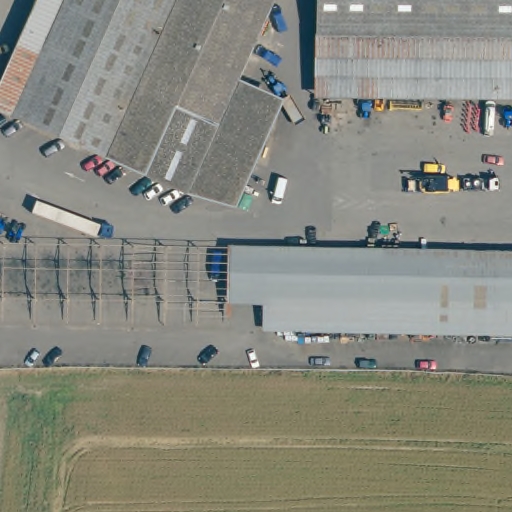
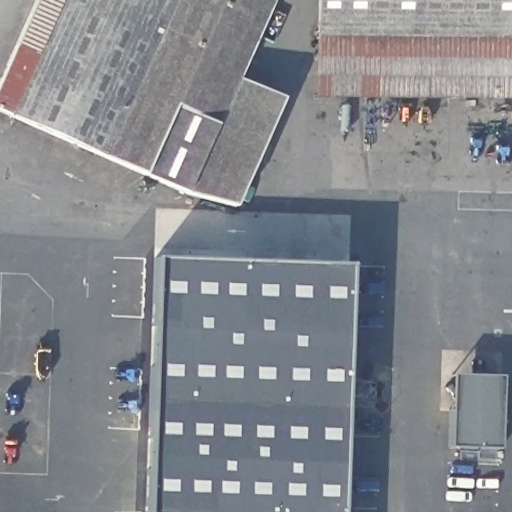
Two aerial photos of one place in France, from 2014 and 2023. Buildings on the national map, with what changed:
unchanged [(207,149),(249,164),(236,204),(183,190),(0,108),(0,84),(39,0),(271,0),(239,75),(207,149)]
unchanged [(317,95),(317,0),(512,0),(512,96),(317,95)]
unchanged [(249,164),(207,149),(239,75),(273,94),(249,164)]
new [(157,260),(348,266),(340,512),(148,512),(157,260)]
new [(452,375),(501,377),(497,450),(450,447),(452,375)]

